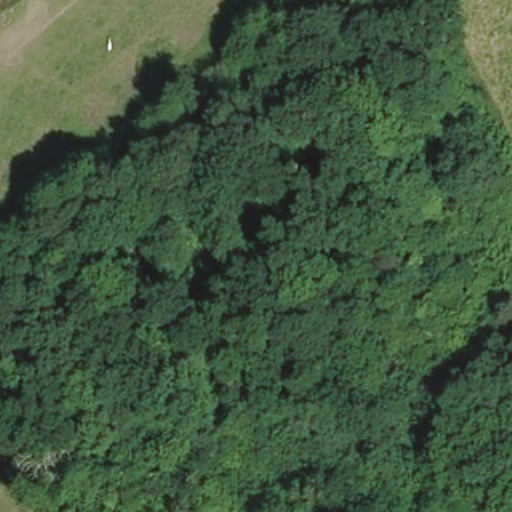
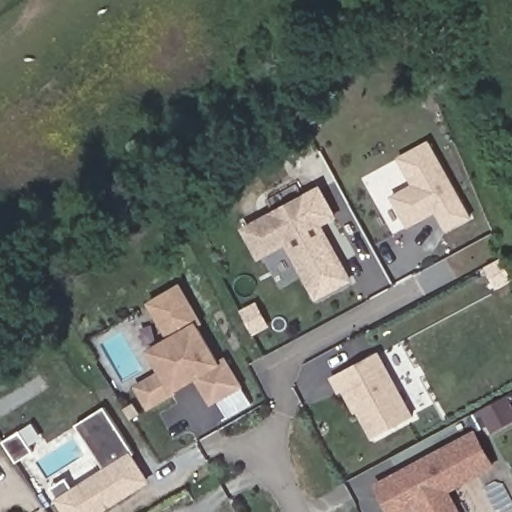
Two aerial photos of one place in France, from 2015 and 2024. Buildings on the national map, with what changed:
unchanged [(391,0),(397,9),(385,16),(379,4),(385,0),(391,0)]
new [(407,229),(390,196),(412,184),(398,157),(430,140),(472,219),(445,231),(436,214),(407,229)]
new [(258,260),(241,226),(321,185),(339,216),(323,225),(353,280),(315,299),(286,245),(258,260)]
new [(159,370),(148,350),(167,338),(146,302),(181,282),(203,323),(200,326),(219,360),(226,356),(243,387),(209,405),(196,380),(175,391),(177,394),(148,410),(135,385),(159,370)]
new [(337,392),(329,377),(379,351),(414,416),(371,439),(357,412),(354,413),(342,390),(337,392)]
new [(131,453),(150,482),(102,512),(63,512),(55,500),(58,498),(51,487),(66,478),(72,487),(104,468),(76,425),(105,405),(134,452),(131,453)]
new [(451,490),(462,512),(416,512),(416,511),(414,512),(389,512),(375,483),(476,428),(496,467),(451,490)]

